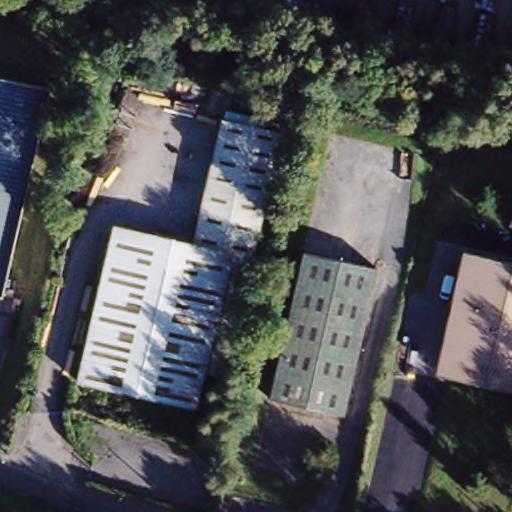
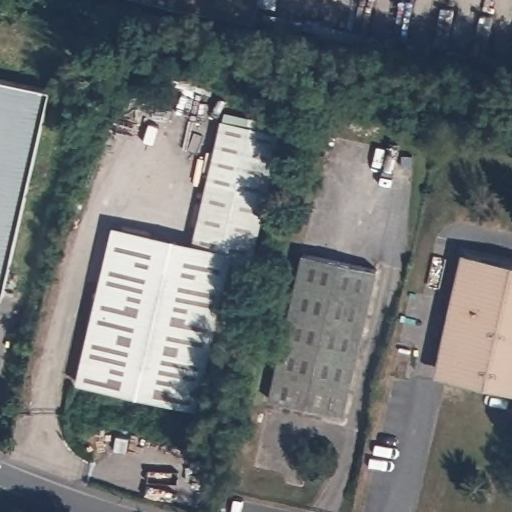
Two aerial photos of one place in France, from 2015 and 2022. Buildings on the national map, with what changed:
unchanged [(160,0),(241,0),(237,18),(160,0)]
unchanged [(2,297),(0,296),(0,77),(50,89),(2,297)]
unchanged [(283,131),(225,378),(206,372),(197,409),(77,381),(112,234),(191,252),(222,117),(283,131)]
unchanged [(378,268),(344,416),(271,398),(305,250),(378,268)]
unchanged [(512,264),(512,395),(449,381),(465,305),(454,303),(464,254),(512,264)]

